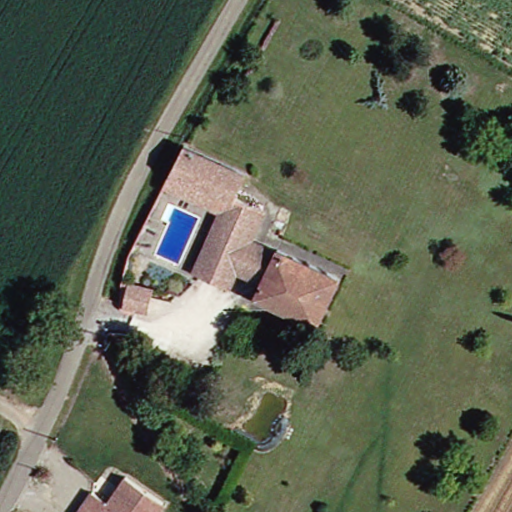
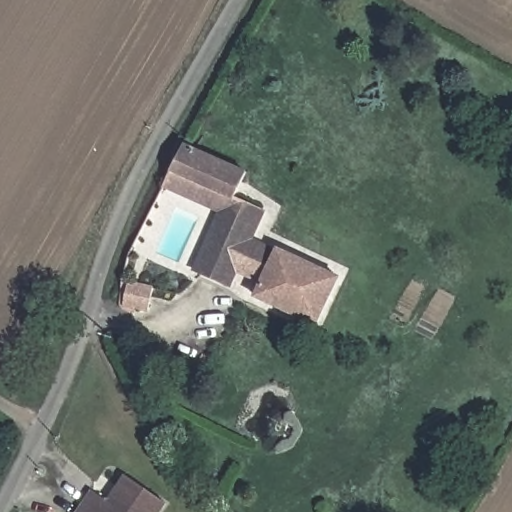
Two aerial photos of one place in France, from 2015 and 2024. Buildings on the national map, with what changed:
unchanged [(178,167),(188,144),(247,174),(238,196),(178,167)]
unchanged [(260,297),(268,279),(244,268),(237,285),(200,269),(225,211),(235,209),(240,200),(272,210),(260,238),(283,249),(347,277),(325,326),(260,297)]
unchanged [(164,288),(157,312),(148,309),(143,322),(115,313),(125,273),(164,288)]
unchanged [(90,488),(105,502),(125,477),(162,510),(160,512),(71,512),(90,488)]

